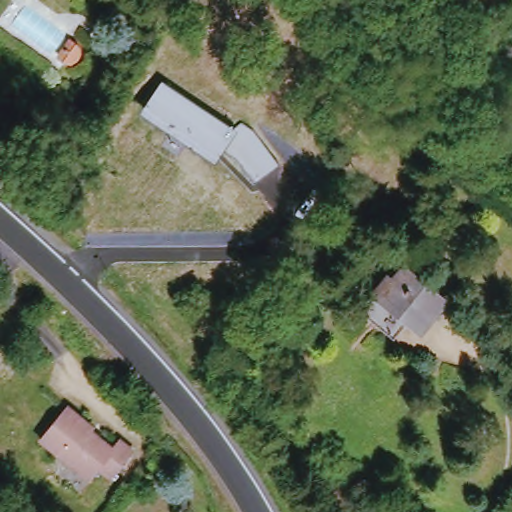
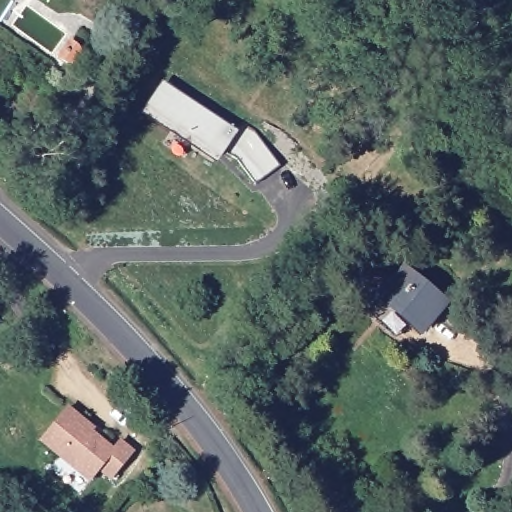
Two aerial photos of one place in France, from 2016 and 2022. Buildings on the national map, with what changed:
unchanged [(77,50),(80,53),(80,63),(75,69),(67,70),(62,68),(77,50)]
unchanged [(162,82),(233,129),(240,123),(252,130),(278,165),(255,184),(237,160),(224,151),(215,164),(140,114),(162,82)]
unchanged [(415,329),(376,296),(398,269),(437,303),(415,329)]
unchanged [(393,340),(362,310),(376,296),(408,323),(393,340)]
unchanged [(127,452),(107,477),(95,467),(84,480),(37,442),(64,407),(86,425),(87,431),(109,448),(115,442),(127,452)]

